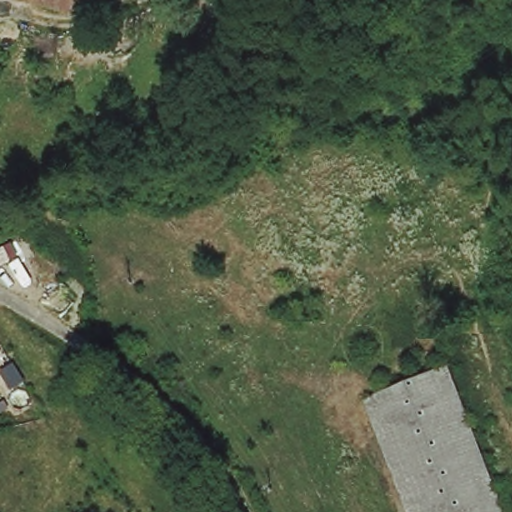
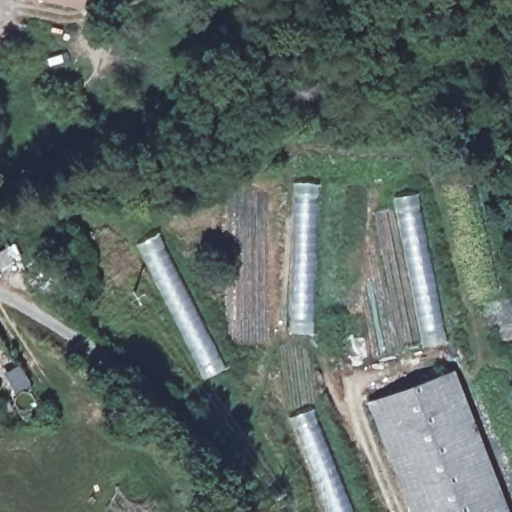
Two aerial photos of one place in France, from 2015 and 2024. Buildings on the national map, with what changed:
unchanged [(84,6),(51,0),(85,0),(84,6)]
new [(286,334),(292,184),(320,185),(314,335),(286,334)]
new [(418,194),(447,342),(422,347),(393,199),(418,194)]
new [(227,367),(205,379),(137,245),(158,234),(227,367)]
unchanged [(509,512),(408,512),(367,406),(453,370),(509,512)]
new [(325,512),(289,420),(314,410),(354,512),(325,512)]

